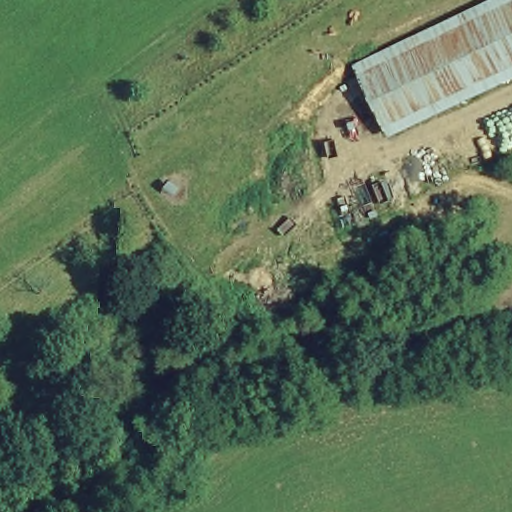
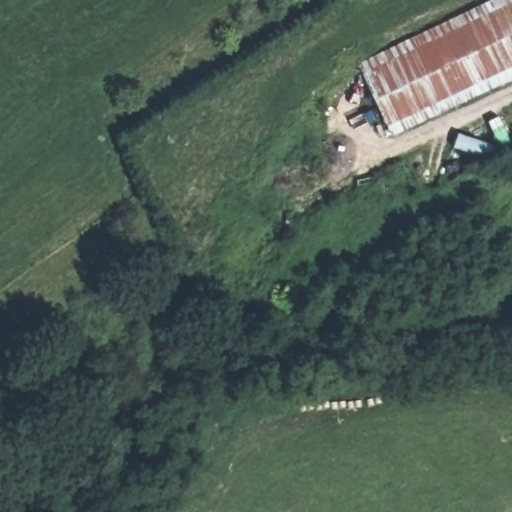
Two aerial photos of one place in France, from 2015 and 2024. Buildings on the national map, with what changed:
unchanged [(393,134),(360,62),(494,0),(512,0),(512,78),(393,134)]

